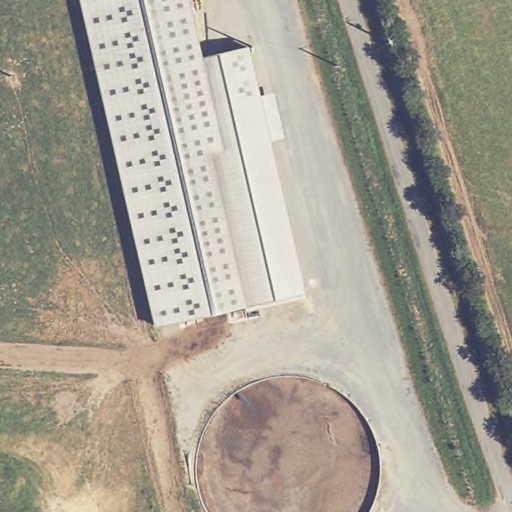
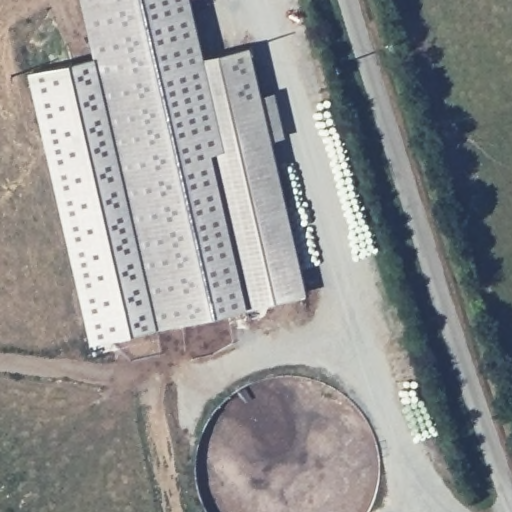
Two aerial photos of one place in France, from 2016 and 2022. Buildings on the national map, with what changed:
unchanged [(190,0),(203,58),(250,46),(261,95),(274,94),(284,137),(270,140),(306,293),(156,327),(82,0),(190,0)]
new [(27,71),(94,55),(156,327),(90,342),(27,71)]

